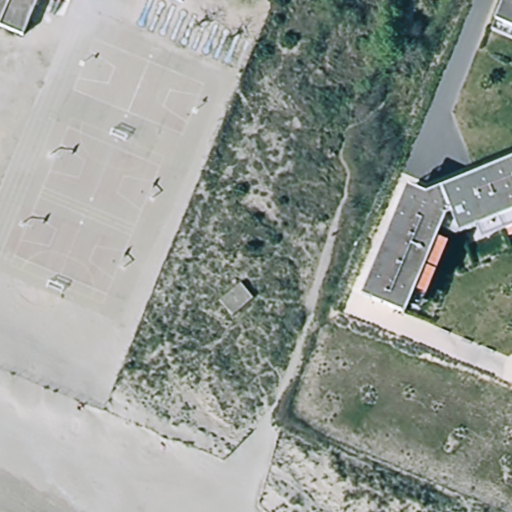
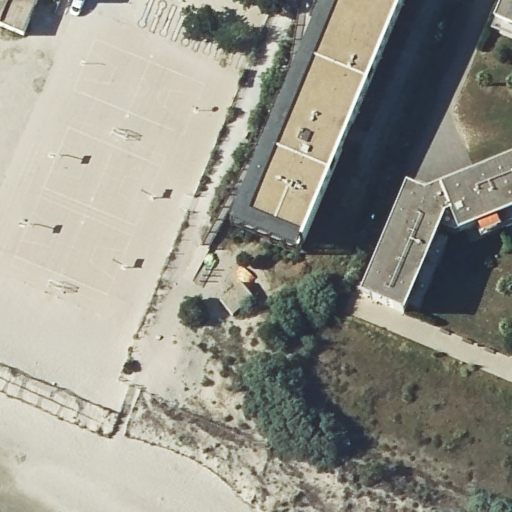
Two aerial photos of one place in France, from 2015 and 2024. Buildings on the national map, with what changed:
unchanged [(18,36),(0,29),(0,0),(34,0),(18,36)]
unchanged [(66,6),(53,0),(68,0),(66,6)]
new [(302,243),(297,254),(233,228),(328,0),(405,0),(302,243)]
unchanged [(491,30),(494,22),(503,0),(512,0),(512,39),(491,30)]
unchanged [(479,237),(476,229),(460,236),(441,228),(437,239),(447,242),(419,313),(409,309),(405,317),(360,297),(406,186),(425,195),(512,159),(512,224),(479,237)]
unchanged [(243,282),(256,298),(233,317),(219,300),(243,282)]

